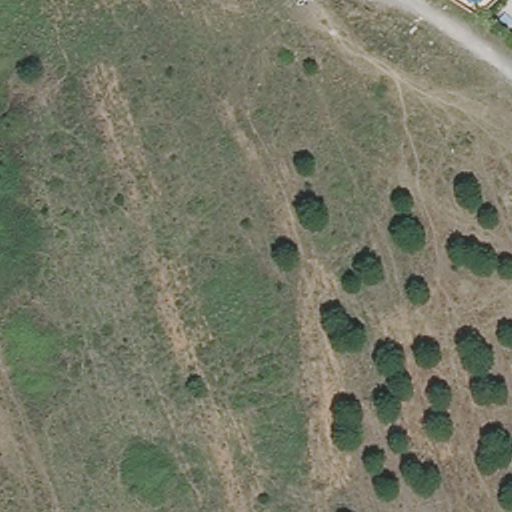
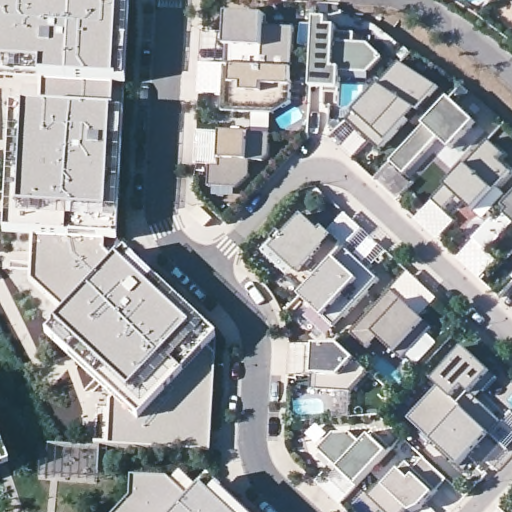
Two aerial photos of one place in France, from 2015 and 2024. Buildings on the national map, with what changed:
new [(108,446),(110,395),(63,350),(70,341),(56,327),(67,315),(31,281),(33,234),(5,233),(12,109),(42,111),(40,79),(0,77),(0,0),(130,0),(127,83),(113,82),(110,116),(124,116),(117,241),(215,339),(207,348),(215,356),(209,452),(108,446)]
new [(293,66),(229,62),(230,45),(230,16),(267,16),(266,28),(295,30),(293,66)]
new [(315,17),(328,18),(328,26),(337,26),(336,32),(355,33),(355,44),(368,45),(382,57),(370,70),(341,69),(340,89),(311,87),(315,17)]
new [(229,62),(293,66),(292,101),(275,112),(224,109),(227,62),(229,62)]
new [(357,112),(402,65),(439,88),(419,110),(389,142),(380,151),(350,121),(357,112)]
new [(441,137),(405,174),(393,162),(427,125),(451,99),(476,122),(451,148),(441,137)]
new [(270,155),(264,162),(251,160),(251,176),(238,189),(212,187),(212,167),(221,167),(222,159),(223,134),(250,134),(271,136),(270,155)]
new [(488,140),(503,154),(498,159),(511,171),(474,211),(458,196),(444,211),(432,200),(488,140)]
new [(505,207),(512,201),(512,226),(508,230),(500,222),(507,214),(509,212),(505,207)]
new [(215,216),(207,224),(193,212),(201,203),(215,216)]
new [(301,267),(297,265),(291,271),(267,249),(305,208),(321,222),(324,220),(336,231),(301,267)]
new [(508,230),(489,251),(475,239),(495,217),(508,230)]
new [(325,317),(303,296),(310,288),(291,271),(297,265),(301,267),(332,235),(381,280),(335,327),(325,317)]
new [(396,352),(379,336),(368,347),(353,333),(393,291),(405,302),(426,322),(433,328),(403,359),(396,352)]
new [(349,391),(314,389),(313,377),(316,342),(341,345),(358,358),(367,371),(349,391)]
new [(432,382),(465,347),(499,377),(478,400),(501,422),(492,432),(467,412),(438,386),(432,382)]
new [(412,418),(441,388),(465,410),(467,412),(492,432),(461,466),(435,441),(412,418)]
new [(333,433),(349,432),(362,444),(373,432),(391,449),(357,487),(318,450),(333,433)]
new [(9,467),(0,471),(0,443),(9,467)]
new [(382,482),(386,486),(407,462),(414,469),(425,458),(448,480),(422,508),(414,512),(413,512),(409,508),(406,512),(386,512),(369,496),(382,482)]
new [(131,502),(132,481),(167,482),(189,506),(208,482),(239,512),(121,512),(131,502)]

